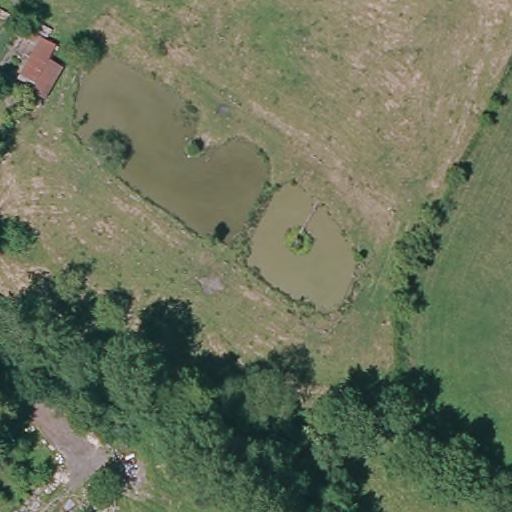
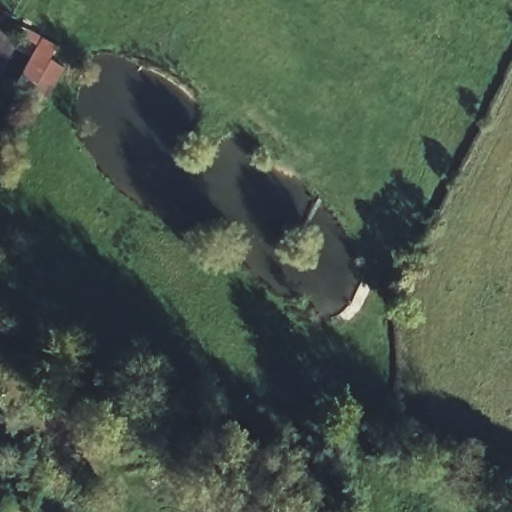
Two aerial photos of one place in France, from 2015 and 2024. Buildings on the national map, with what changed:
unchanged [(21,89),(46,45),(51,47),(62,52),(36,99),(21,89)]

